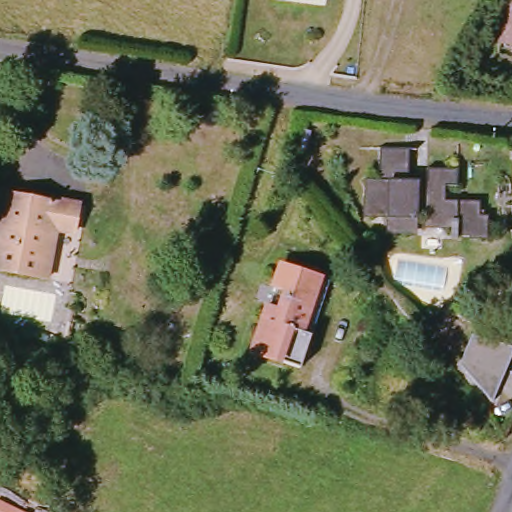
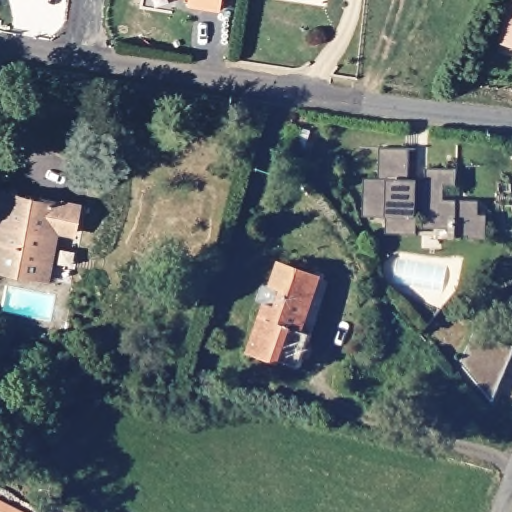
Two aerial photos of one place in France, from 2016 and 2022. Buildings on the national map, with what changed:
new [(188,7),(189,0),(222,0),(220,12),(188,7)]
unchanged [(511,0),(512,0),(512,45),(500,41),(511,0)]
unchanged [(470,240),(470,232),(455,230),(452,237),(444,236),(443,224),(418,220),(418,207),(406,205),(403,224),(382,222),(384,207),(361,204),(366,170),(378,170),(384,139),(418,144),(415,176),(430,178),(432,169),(461,171),(460,190),(449,189),(446,204),(472,207),(472,220),(486,222),(483,241),(470,240)]
unchanged [(72,231),(53,227),(42,278),(0,271),(0,214),(21,219),(27,195),(76,205),(72,231)]
unchanged [(248,354),(260,303),(274,307),(279,290),(269,288),(275,265),(313,275),(302,320),(290,317),(287,328),(307,333),(298,367),(248,354)]
unchanged [(476,328),(512,342),(512,351),(495,399),(465,358),(476,328)]

